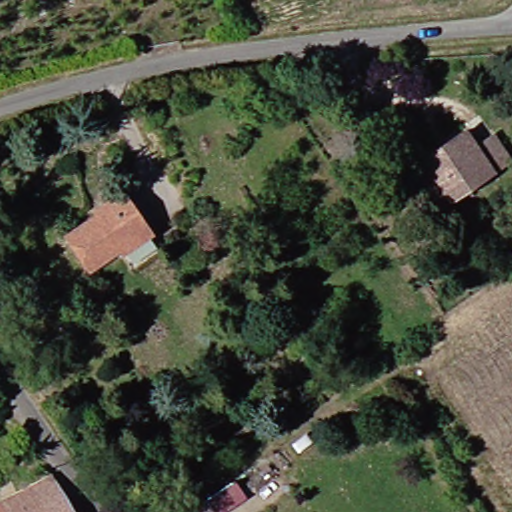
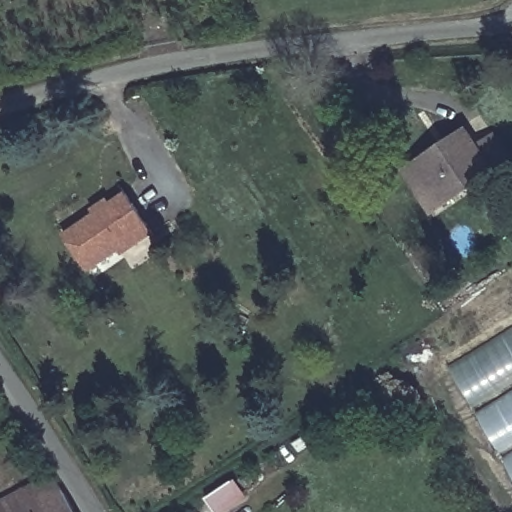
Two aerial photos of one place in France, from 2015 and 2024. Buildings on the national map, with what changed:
unchanged [(421,167),(473,137),(479,148),(497,137),(512,160),(512,164),(443,205),(432,212),(410,173),(421,167)]
unchanged [(126,256),(125,253),(95,274),(69,236),(126,196),(147,226),(154,236),(126,256)]
new [(475,349),(461,323),(512,292),(512,481),(446,365),(475,349)]
unchanged [(8,512),(0,497),(55,472),(78,512),(8,512)]
unchanged [(218,512),(217,510),(244,491),(253,506),(243,512),(218,512)]

